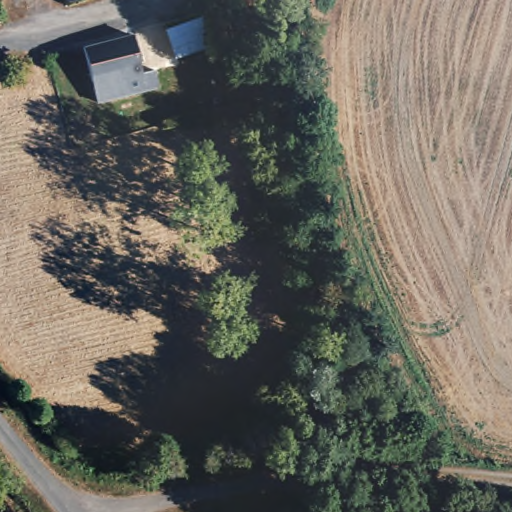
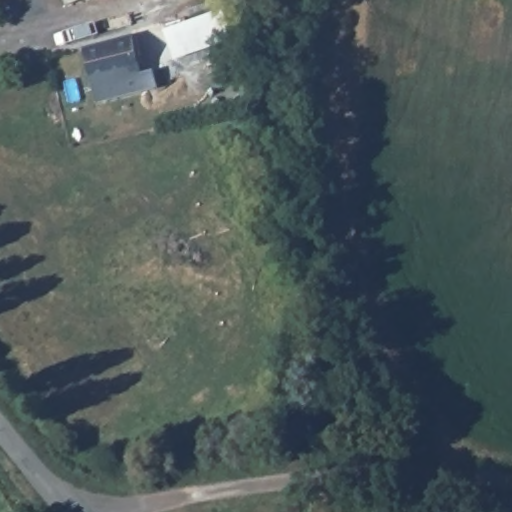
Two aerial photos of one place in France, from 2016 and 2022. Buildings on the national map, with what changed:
unchanged [(56,0),(76,0),(58,5),(56,0)]
unchanged [(89,13),(88,10),(84,10),(80,0),(130,0),(131,5),(89,13)]
unchanged [(210,10),(224,43),(171,66),(157,33),(210,10)]
unchanged [(143,76),(91,94),(75,29),(126,18),(143,76)]
unchanged [(143,76),(158,72),(164,91),(96,113),(91,94),(143,76)]

